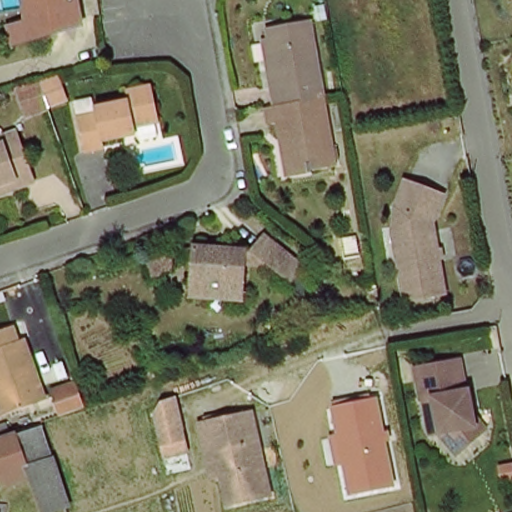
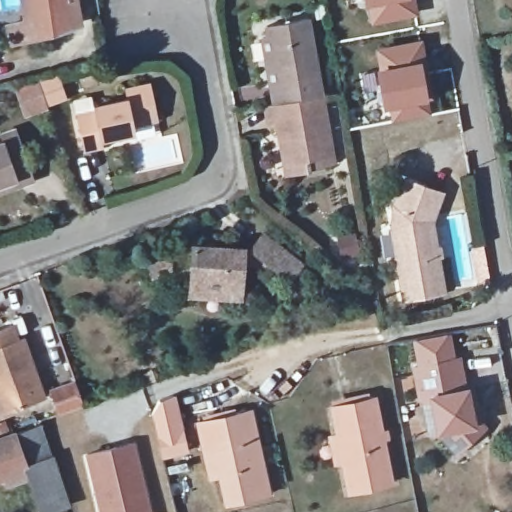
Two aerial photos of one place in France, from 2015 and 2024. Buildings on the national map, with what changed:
unchanged [(11,39),(7,24),(30,18),(26,0),(76,0),(80,20),(11,39)]
new [(372,25),(364,4),(363,0),(411,0),(419,16),(372,25)]
unchanged [(267,82),(259,36),(265,34),(263,24),(304,17),(320,93),(270,104),(267,82)]
new [(434,98),(429,101),(432,115),(392,123),(383,109),(376,70),(375,48),(422,40),(434,98)]
unchanged [(125,132),(104,136),(106,144),(87,149),(79,115),(96,110),(94,105),(130,96),(127,86),(153,80),(161,115),(137,121),(139,129),(125,132)]
unchanged [(23,126),(14,100),(36,95),(53,91),(55,90),(64,116),(46,121),(23,126)]
unchanged [(275,133),(273,122),(265,121),(262,105),(270,104),(320,93),(328,144),(333,145),(333,155),(329,157),(331,163),(306,169),(283,174),(275,133)]
unchanged [(1,130),(17,126),(34,175),(19,181),(0,188),(0,138),(3,137),(1,130)]
unchanged [(435,226),(447,296),(407,303),(395,235),(397,210),(408,185),(445,199),(435,226)]
unchanged [(291,278),(252,246),(265,230),(303,261),(291,278)]
new [(355,256),(340,260),(336,239),(350,235),(355,256)]
unchanged [(189,295),(191,282),(194,246),(246,249),(242,292),(211,290),(209,295),(189,295)]
unchanged [(153,280),(149,266),(172,258),(170,275),(153,280)]
unchanged [(15,338),(21,336),(42,398),(3,412),(0,414),(0,327),(10,323),(15,338)]
unchanged [(459,453),(441,432),(432,433),(427,398),(422,398),(417,367),(462,358),(469,390),(470,390),(475,412),(487,428),(485,430),(459,453)]
unchanged [(72,381),(82,405),(79,407),(57,415),(48,390),(72,381)]
unchanged [(394,487),(346,496),(341,465),(335,465),(329,435),(336,433),(332,403),(369,392),(370,397),(378,396),(394,487)]
unchanged [(173,400),(184,458),(161,461),(151,417),(158,401),(173,400)]
unchanged [(209,458),(200,427),(252,413),(275,496),(233,508),(225,480),(216,482),(209,458)]
unchanged [(68,502),(41,511),(39,508),(27,481),(26,478),(11,433),(30,426),(42,422),(54,455),(70,501),(68,502)]
unchanged [(1,478),(0,479),(0,437),(11,433),(26,478),(2,487),(1,478)]
new [(136,441),(152,512),(97,512),(83,452),(136,441)]

